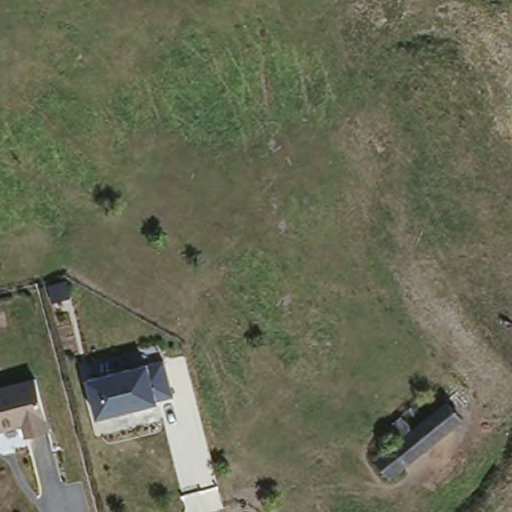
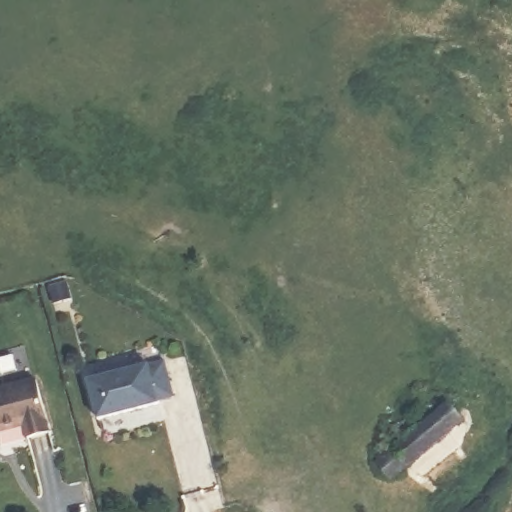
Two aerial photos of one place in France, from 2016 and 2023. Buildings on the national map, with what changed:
unchanged [(167,357),(175,388),(160,393),(161,401),(99,418),(87,379),(152,362),(167,357)]
unchanged [(52,428),(33,434),(28,429),(18,431),(14,425),(0,430),(0,385),(38,373),(52,428)]
unchanged [(448,403),(403,439),(392,424),(437,388),(448,403)]
unchanged [(392,478),(377,460),(403,439),(448,403),(462,420),(392,478)]

